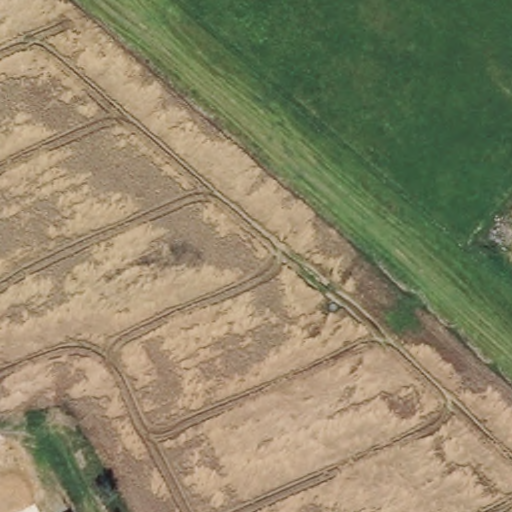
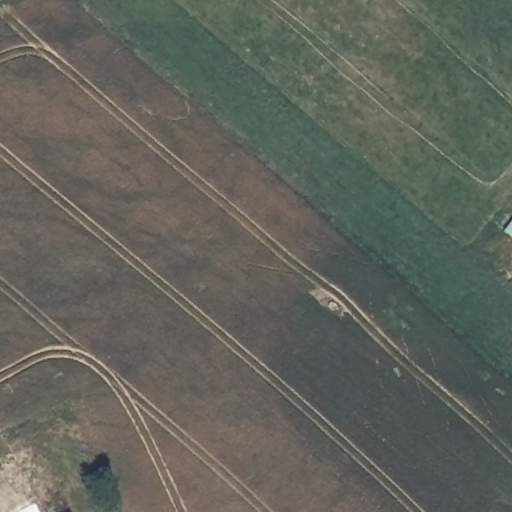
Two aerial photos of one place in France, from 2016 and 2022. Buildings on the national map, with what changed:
[]

